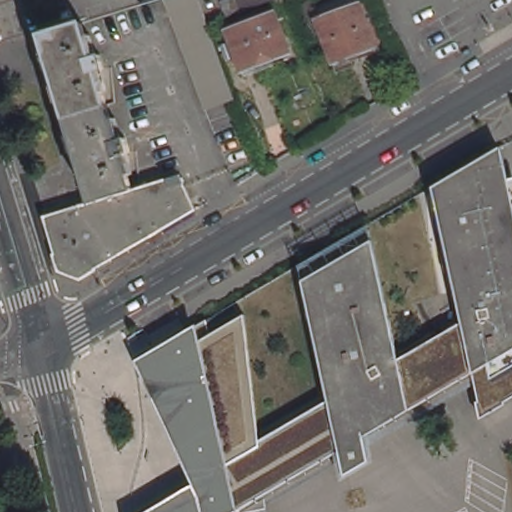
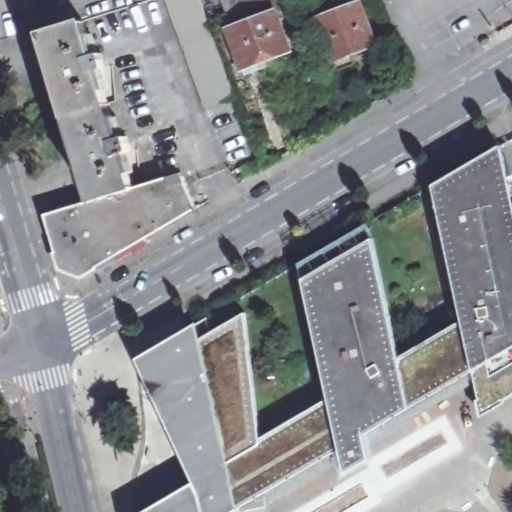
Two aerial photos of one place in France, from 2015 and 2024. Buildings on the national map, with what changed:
unchanged [(203,107),(162,0),(199,0),(235,95),(203,107)]
unchanged [(222,0),(265,0),(227,15),(222,0)]
unchanged [(317,22),(316,22),(312,11),(344,0),(358,0),(360,7),(377,49),(334,65),(317,22)]
unchanged [(274,10),(288,50),(259,60),(260,66),(244,73),(227,27),(274,10)]
unchanged [(82,26),(93,60),(100,59),(105,72),(98,75),(119,144),(125,141),(130,155),(122,157),(133,192),(92,205),(82,170),(78,157),(67,122),(57,87),(53,74),(42,38),(82,26)]
unchanged [(340,450),(329,397),(304,280),(374,239),(400,358),(463,321),(437,201),(506,161),(512,189),(512,350),(474,372),(340,450)]
unchanged [(92,205),(133,192),(180,177),(182,181),(182,182),(197,213),(145,243),(118,260),(112,263),(97,272),(82,281),(62,273),(52,242),(45,220),(92,205)]
unchanged [(192,480),(134,357),(197,320),(200,340),(249,310),(257,438),(329,397),(340,450),(253,502),(244,505),(245,512),(135,512),(192,480)]
unchanged [(482,415),(474,372),(512,350),(512,398),(482,415)]

